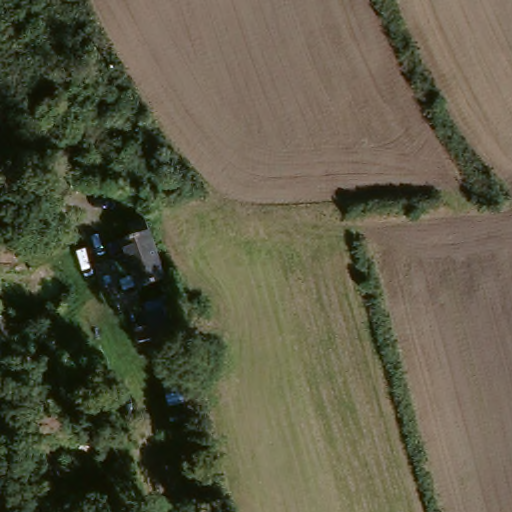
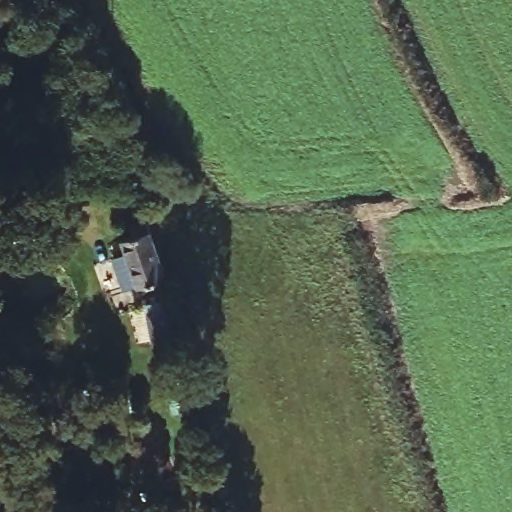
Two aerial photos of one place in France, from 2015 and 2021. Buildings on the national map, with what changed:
unchanged [(166,280),(139,288),(123,235),(138,230),(134,217),(147,212),(166,280)]
unchanged [(154,346),(149,329),(146,319),(167,313),(169,322),(174,339),(154,346)]

